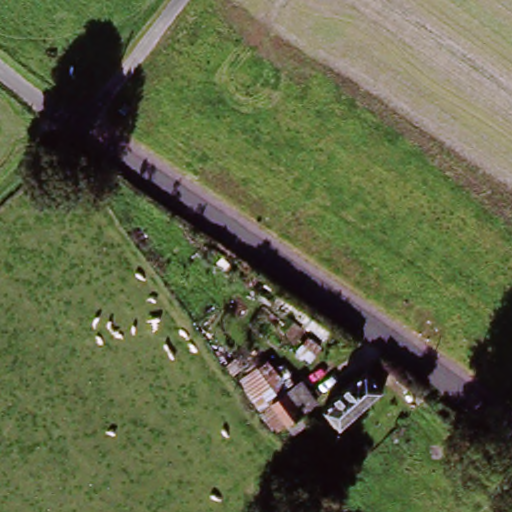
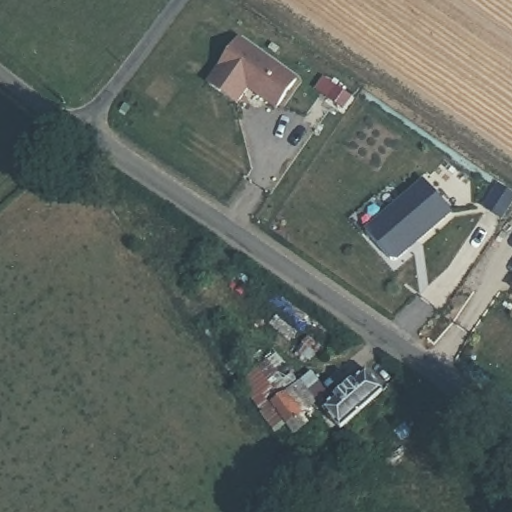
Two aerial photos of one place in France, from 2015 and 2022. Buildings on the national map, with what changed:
new [(240,41),(298,81),(278,109),(249,89),(237,107),(208,87),(240,41)]
new [(421,185),(442,212),(397,248),(393,247),(374,223),(421,185)]
new [(499,189),(512,197),(512,206),(502,220),(486,209),(499,189)]
unchanged [(321,394),(313,399),(323,415),(296,434),(292,428),(278,436),(243,383),(271,361),(291,390),(309,378),(321,394)]
unchanged [(342,399),(341,398),(358,381),(360,383),(371,372),(389,390),(346,429),(330,411),(342,399)]

